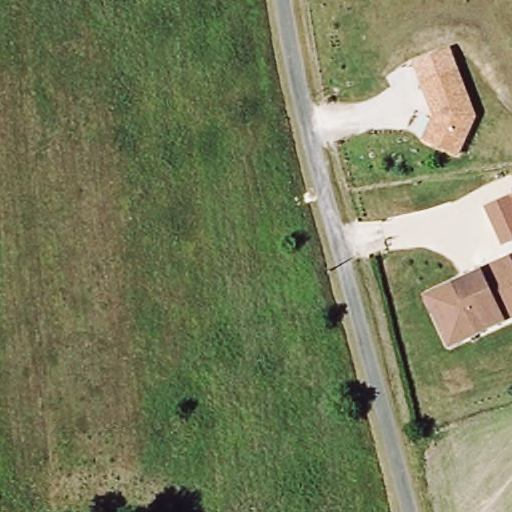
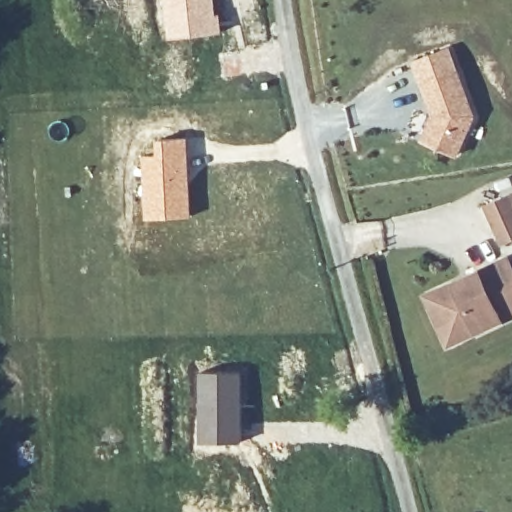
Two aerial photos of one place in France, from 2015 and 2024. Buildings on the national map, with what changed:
new [(162,40),(157,0),(217,0),(222,33),(162,40)]
unchanged [(414,59),(452,46),(461,70),(423,83),(414,59)]
unchanged [(435,121),(435,115),(423,83),(461,70),(478,118),(459,160),(424,144),(435,121)]
new [(154,153),(153,140),(187,137),(192,217),(144,220),(139,154),(154,153)]
unchanged [(512,241),(501,245),(484,206),(512,194),(512,241)]
unchanged [(439,316),(430,297),(447,290),(512,263),(512,322),(508,324),(463,344),(456,329),(453,330),(456,347),(452,348),(446,333),(439,316)]
new [(241,371),(241,442),(200,443),(196,372),(241,371)]

